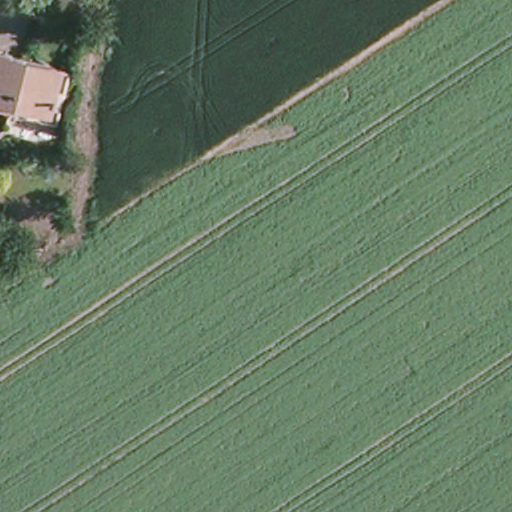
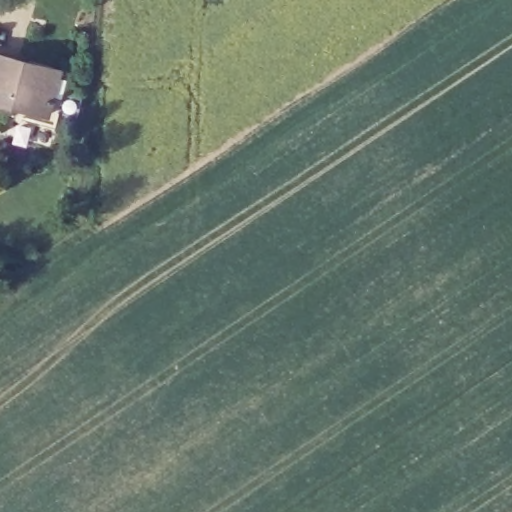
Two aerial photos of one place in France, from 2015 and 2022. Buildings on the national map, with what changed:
unchanged [(2,103),(0,102),(0,50),(14,54),(51,65),(61,68),(48,121),(34,117),(1,108),(2,103)]

